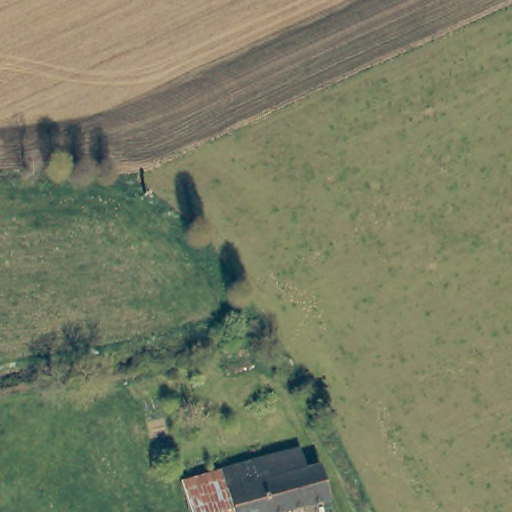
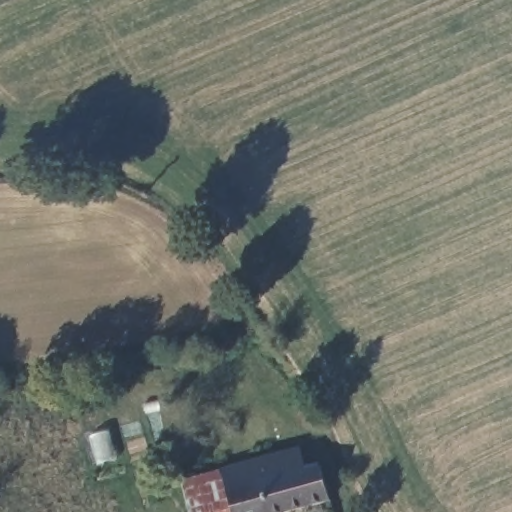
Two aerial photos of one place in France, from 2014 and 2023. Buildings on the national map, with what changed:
unchanged [(307,465),(321,461),(332,495),(278,512),(235,512),(228,490),(222,469),(300,445),(307,465)]
unchanged [(235,512),(192,512),(189,501),(183,481),(222,469),(228,490),(235,512)]

